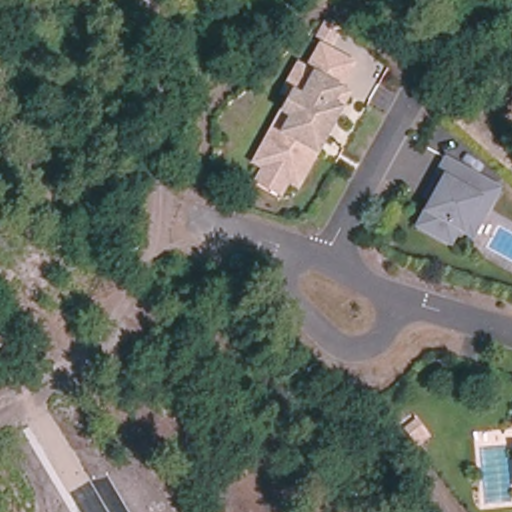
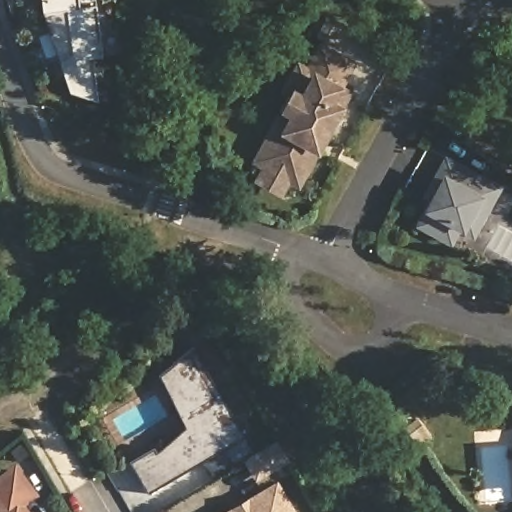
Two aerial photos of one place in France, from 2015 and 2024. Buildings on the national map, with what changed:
new [(79,7),(96,5),(102,56),(98,101),(70,92),(60,63),(72,54),(67,10),(43,13),(42,0),(78,0),(79,7)]
unchanged [(268,176),(276,162),(264,156),(271,144),(283,121),(300,91),(292,87),(305,64),(313,69),(327,44),(356,60),(342,84),(352,89),(327,135),(323,142),(303,178),(292,171),(285,185),(268,176)]
unchanged [(458,230),(455,228),(447,243),(416,226),(430,200),(423,196),(435,176),(443,160),(491,186),(492,193),(477,222),(469,236),(458,230)]
new [(148,494),(130,463),(155,449),(157,454),(186,428),(160,375),(194,348),(244,437),(148,494)]
new [(271,444),(281,461),(250,479),(240,462),(271,444)]
new [(40,496),(25,506),(29,512),(0,512),(0,476),(16,463),(40,496)]
new [(225,512),(277,481),(296,512),(225,512)]

